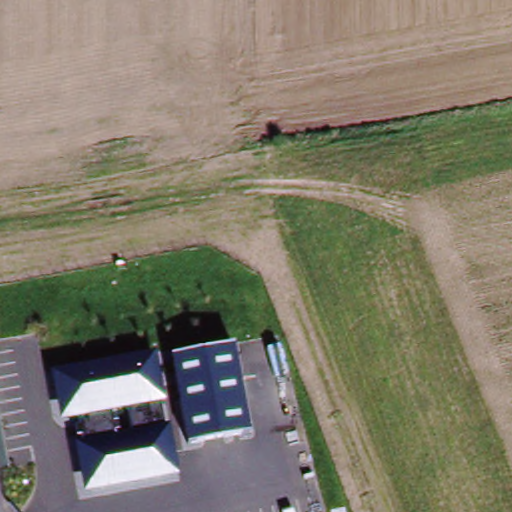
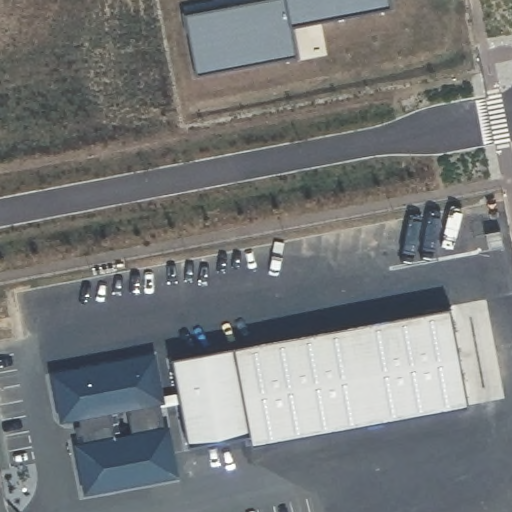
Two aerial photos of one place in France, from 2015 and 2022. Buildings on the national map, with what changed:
new [(270,0),(392,0),(394,11),(293,30),(298,61),(198,77),(186,16),(270,0)]
new [(235,345),(450,311),(467,408),(253,446),(250,433),(235,345)]
unchanged [(250,433),(188,445),(172,357),(235,345),(250,433)]
unchanged [(180,475),(85,493),(75,442),(84,440),(80,416),(60,421),(51,372),(156,351),(180,475)]

